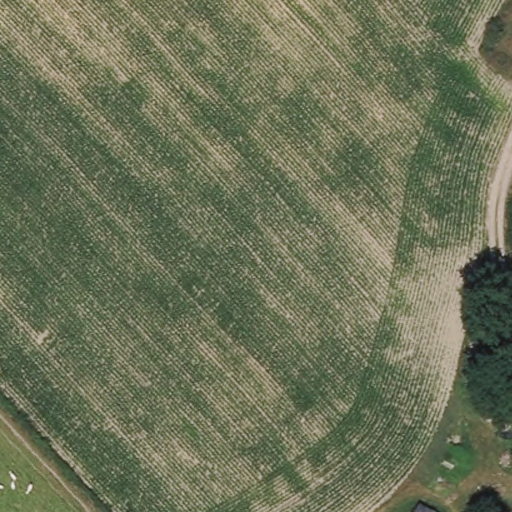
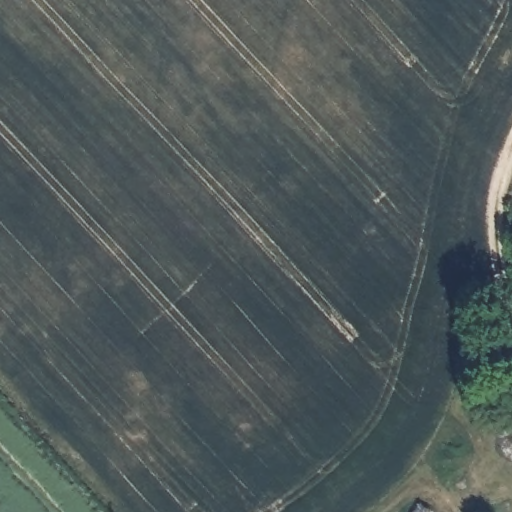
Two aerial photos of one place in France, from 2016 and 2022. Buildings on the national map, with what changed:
unchanged [(425,512),(416,512),(419,508),(425,512)]

